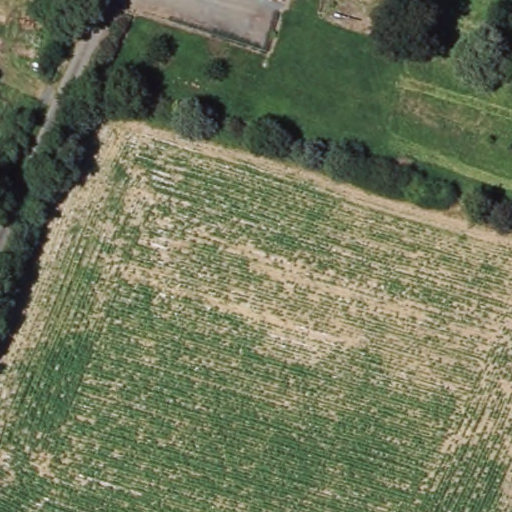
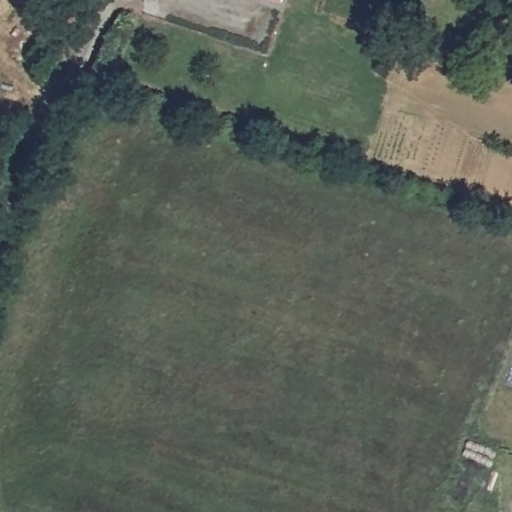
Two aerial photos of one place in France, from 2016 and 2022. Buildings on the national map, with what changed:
unchanged [(282,0),(282,2),(273,0),(282,0)]

